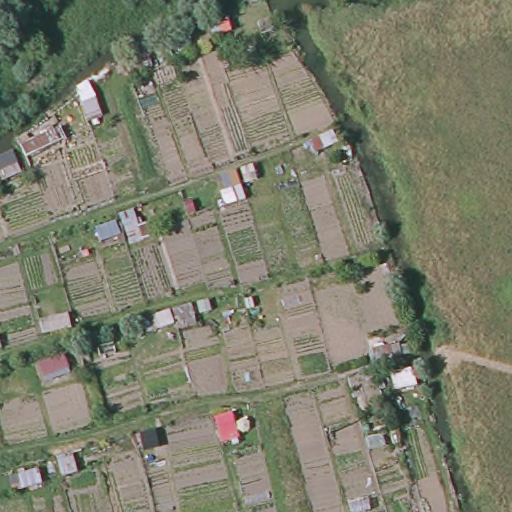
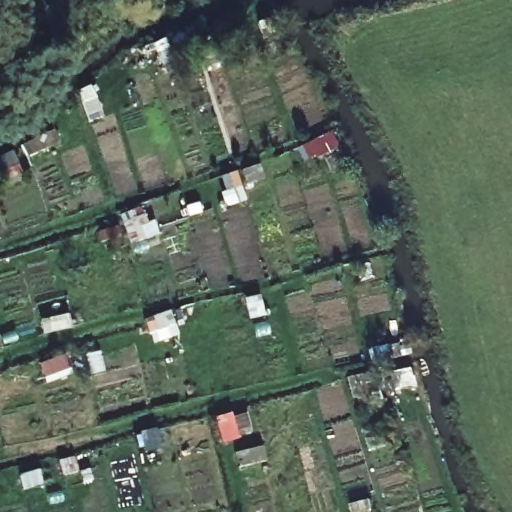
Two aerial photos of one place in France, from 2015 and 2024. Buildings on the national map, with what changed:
[]

